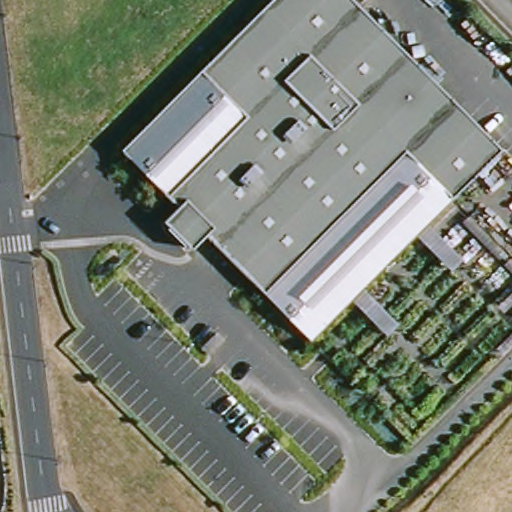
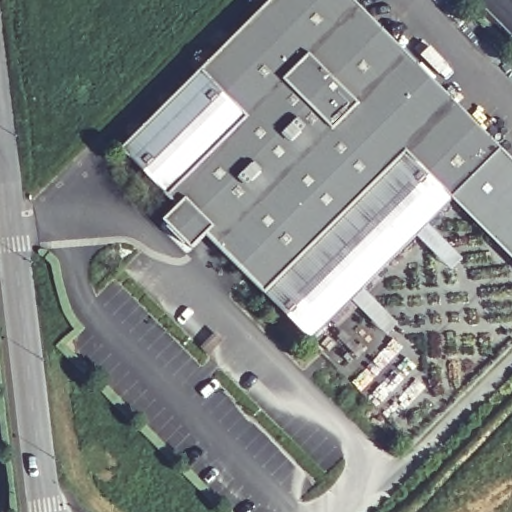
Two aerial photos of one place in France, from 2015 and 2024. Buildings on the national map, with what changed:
unchanged [(192,245),(162,217),(177,202),(121,145),(269,0),(357,0),(504,148),(312,338),(206,231),(192,245)]
new [(512,157),(512,256),(454,197),(504,148),(512,157)]

